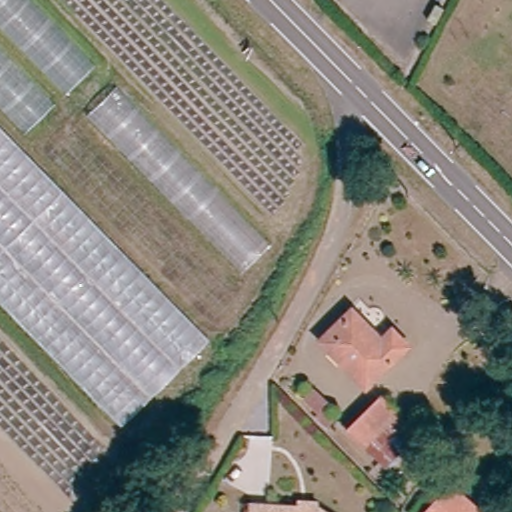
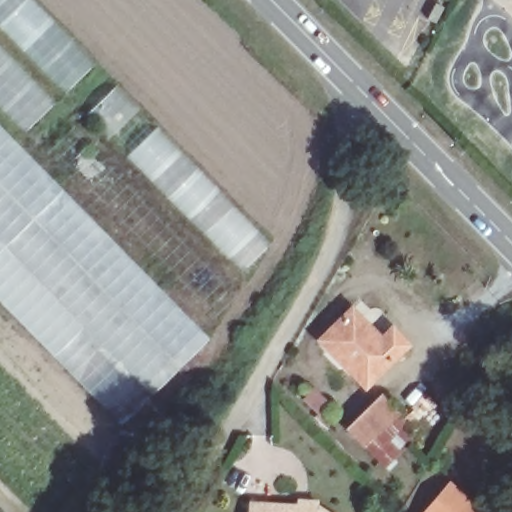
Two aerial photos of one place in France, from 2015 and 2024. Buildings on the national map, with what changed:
unchanged [(29,129),(0,100),(0,0),(30,0),(94,62),(29,129)]
unchanged [(443,5),(434,21),(426,17),(434,1),(443,5)]
unchanged [(411,69),(408,74),(403,70),(406,65),(411,69)]
unchanged [(114,88),(267,243),(243,269),(90,113),(114,88)]
unchanged [(123,424),(0,301),(0,131),(206,340),(123,424)]
unchanged [(344,310),(374,339),(384,330),(399,344),(359,387),(314,341),(344,310)]
unchanged [(380,463),(367,450),(345,429),(373,399),(394,420),(389,426),(404,441),(380,463)]
unchanged [(445,484),(476,511),(475,512),(420,512),(445,484)]
unchanged [(244,502),(291,503),(291,498),(309,499),(309,504),(310,504),(323,512),(243,512),(244,502)]

